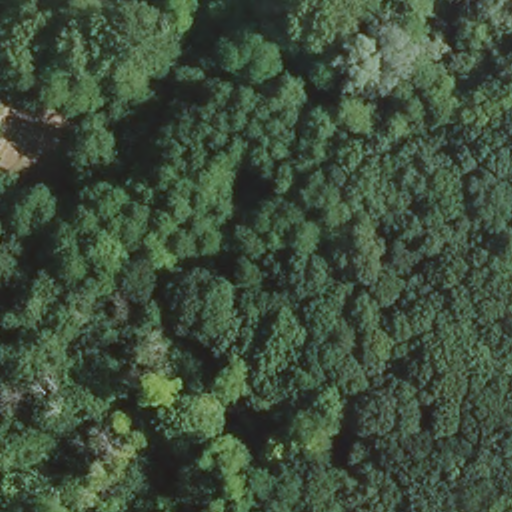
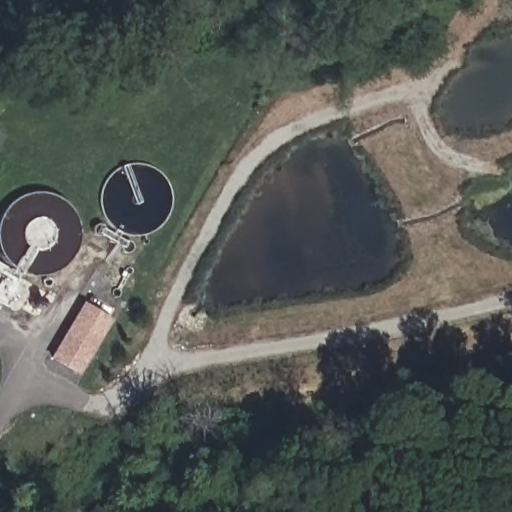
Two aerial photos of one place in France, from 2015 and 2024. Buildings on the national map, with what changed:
new [(82,303),(111,319),(79,374),(50,356),(82,303)]

